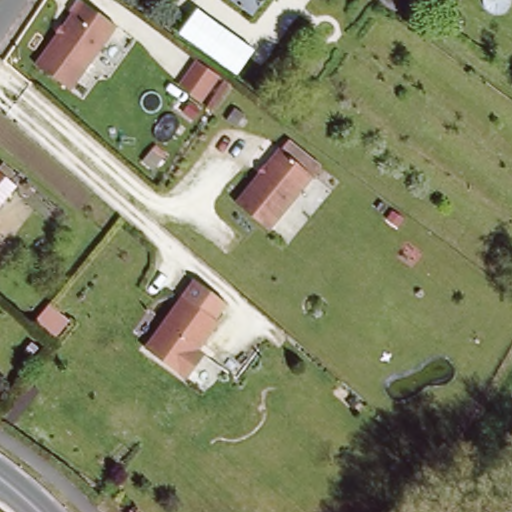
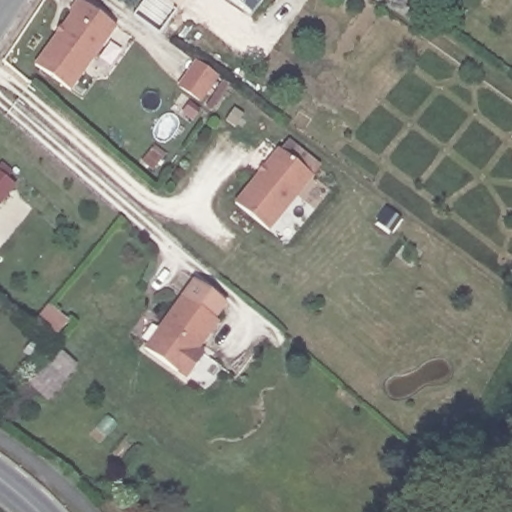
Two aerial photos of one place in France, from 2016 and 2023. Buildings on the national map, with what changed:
unchanged [(253,16),(233,0),(265,0),(253,16)]
unchanged [(115,34),(68,96),(34,71),(71,20),(68,18),(78,5),(115,34)]
unchanged [(180,34),(198,9),(255,51),(237,75),(180,34)]
unchanged [(310,177),(270,235),(237,207),(277,150),(310,177)]
unchanged [(2,202),(0,201),(0,174),(15,187),(2,202)]
unchanged [(194,367),(182,382),(141,352),(181,302),(194,287),(225,310),(212,326),(216,328),(194,355),(200,359),(194,367)]

